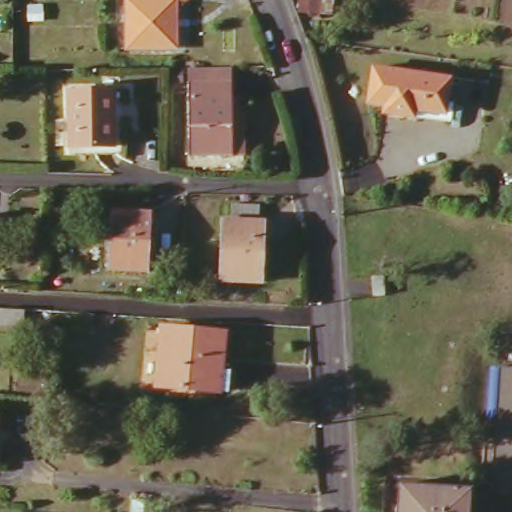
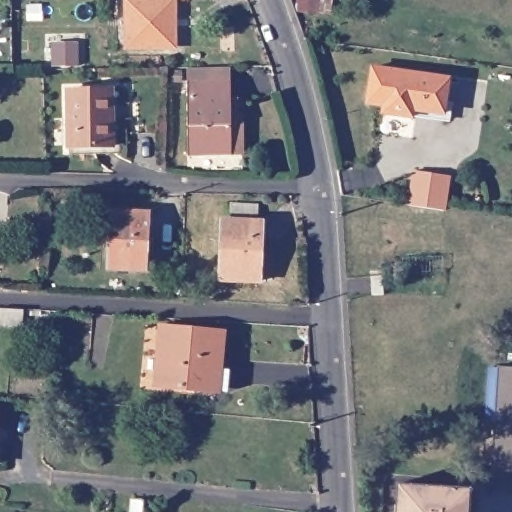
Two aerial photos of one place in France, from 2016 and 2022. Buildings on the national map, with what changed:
unchanged [(169,0),(168,45),(121,45),(121,0),(169,0)]
unchanged [(372,69),(448,81),(442,116),(413,111),(411,117),(382,112),(382,106),(367,104),(372,69)]
unchanged [(188,73),(231,71),(230,88),(228,161),(185,159),(188,87),(188,73)]
unchanged [(71,91),(115,91),(114,146),(69,145),(71,91)]
new [(413,173),(448,178),(442,212),(408,207),(413,173)]
unchanged [(224,222),(230,222),(231,205),(257,206),(256,223),(261,223),(258,284),(220,281),(224,222)]
unchanged [(112,212),(150,214),(147,273),(109,270),(112,212)]
unchanged [(221,392),(210,391),(150,385),(155,327),(215,332),(212,369),(222,370),(221,392)]
unchanged [(490,422),(482,421),(485,368),(493,368),(493,366),(512,367),(512,491),(486,490),(490,422)]
unchanged [(394,485),(465,489),(464,512),(392,512),(394,485)]
unchanged [(129,505),(144,506),(143,512),(129,512),(129,505)]

